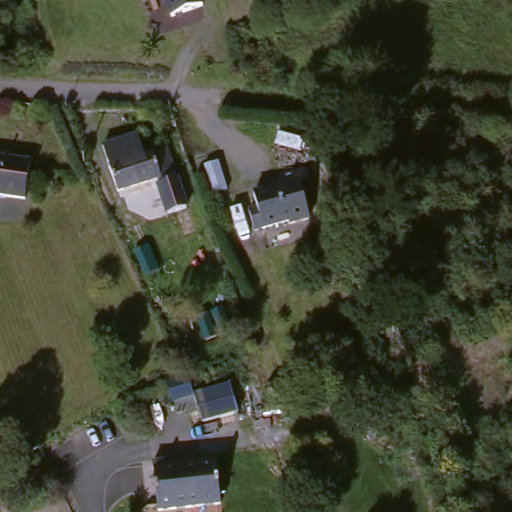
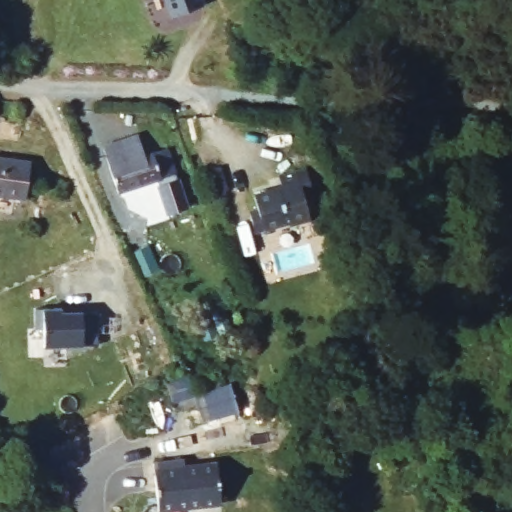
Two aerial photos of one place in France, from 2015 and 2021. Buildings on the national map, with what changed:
unchanged [(173,16),(167,0),(202,0),(204,5),(173,16)]
unchanged [(148,130),(154,151),(177,143),(186,173),(178,176),(177,171),(128,187),(113,141),(148,130)]
unchanged [(34,157),(29,193),(0,189),(0,152),(34,157)]
unchanged [(315,219),(294,224),(294,222),(259,231),(254,212),(263,209),(259,195),(287,187),(284,176),(302,172),(315,219)]
unchanged [(149,245),(159,270),(144,276),(134,251),(149,245)]
new [(36,310),(62,309),(62,314),(97,314),(98,346),(44,348),(43,330),(36,330),(36,310)]
unchanged [(199,393),(235,383),(243,411),(206,421),(199,393)]
unchanged [(158,458),(189,454),(189,461),(222,457),(226,499),(163,506),(158,458)]

